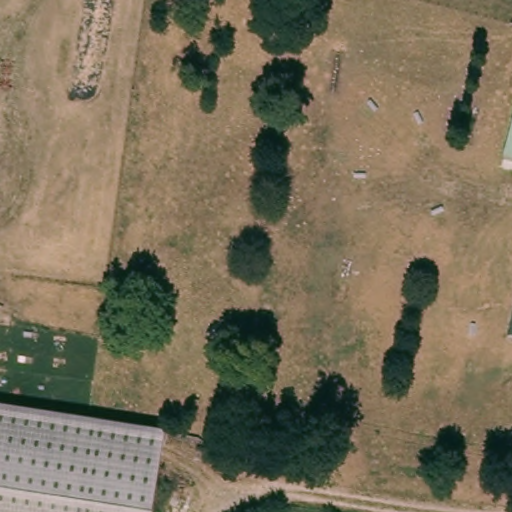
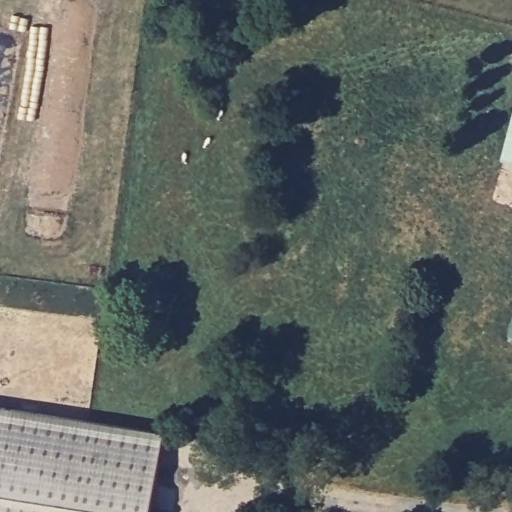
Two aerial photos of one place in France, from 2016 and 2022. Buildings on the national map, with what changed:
unchanged [(512,117),(512,162),(501,159),(512,117)]
unchanged [(512,324),(512,337),(509,336),(512,324)]
unchanged [(68,410),(117,418),(170,427),(172,427),(159,512),(0,512),(0,400),(68,410)]

